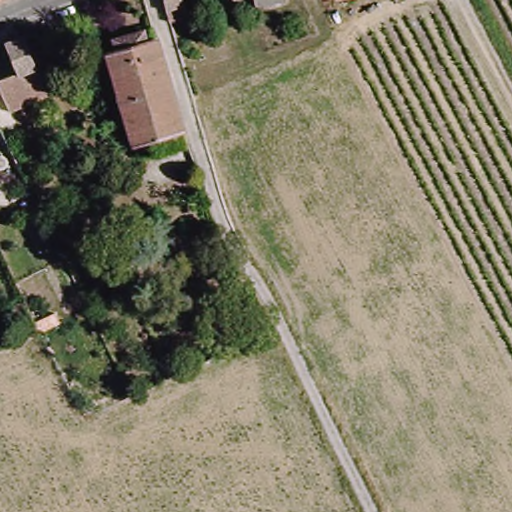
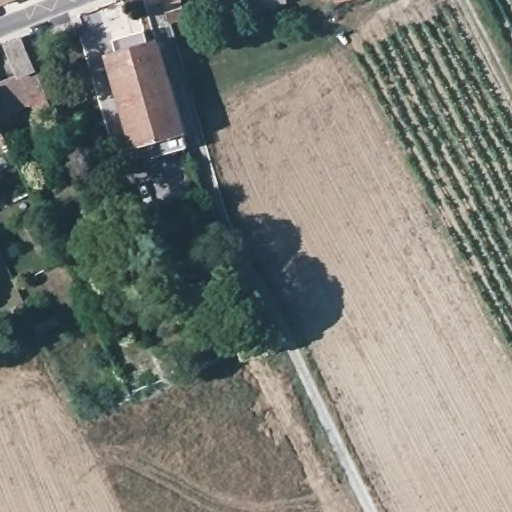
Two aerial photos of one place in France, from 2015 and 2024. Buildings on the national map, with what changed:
unchanged [(25,0),(0,9),(0,0),(25,0)]
unchanged [(178,0),(183,19),(162,23),(156,0),(178,0)]
unchanged [(254,11),(251,0),(283,0),(284,4),(254,11)]
unchanged [(184,134),(128,148),(105,58),(115,54),(111,41),(152,29),(184,134)]
unchanged [(40,45),(46,65),(31,72),(47,116),(33,120),(30,108),(5,118),(0,104),(0,82),(15,74),(4,49),(20,41),(24,51),(40,45)]

